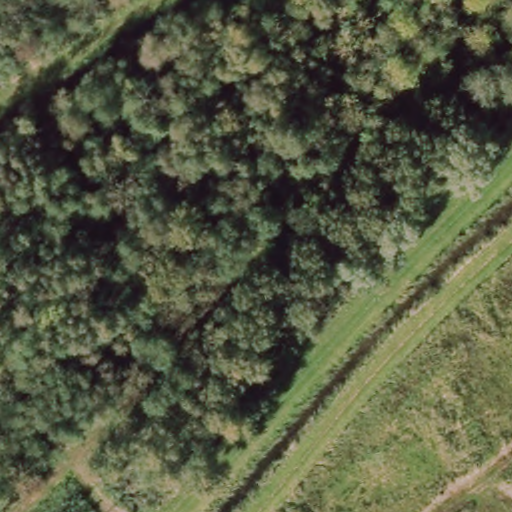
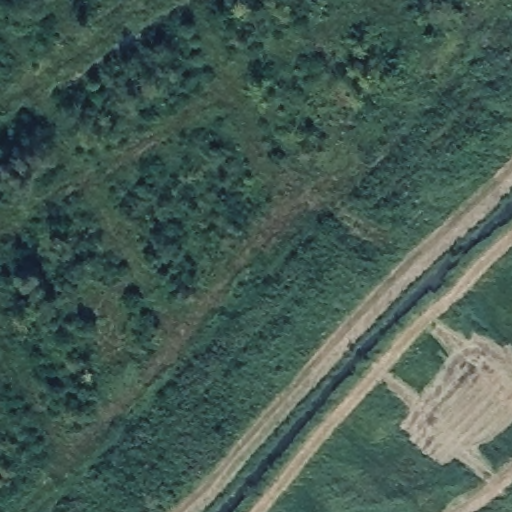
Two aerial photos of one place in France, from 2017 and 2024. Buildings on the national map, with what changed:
[]

